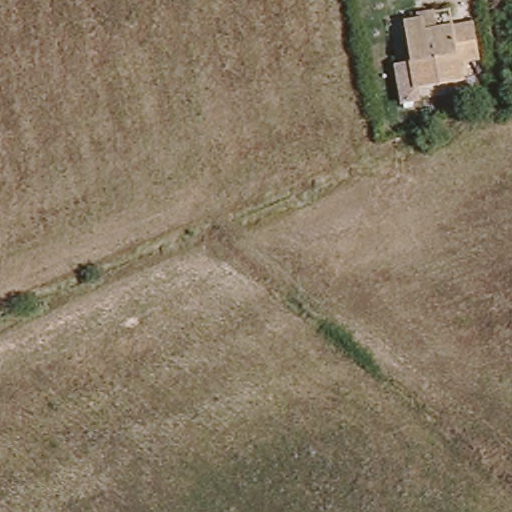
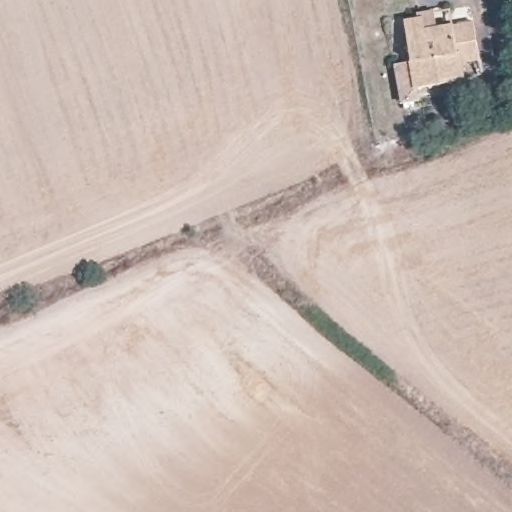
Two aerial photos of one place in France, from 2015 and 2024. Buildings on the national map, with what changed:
unchanged [(422,30),(470,21),(476,57),(457,61),(460,79),(413,88),(400,21),(419,17),(422,30)]

